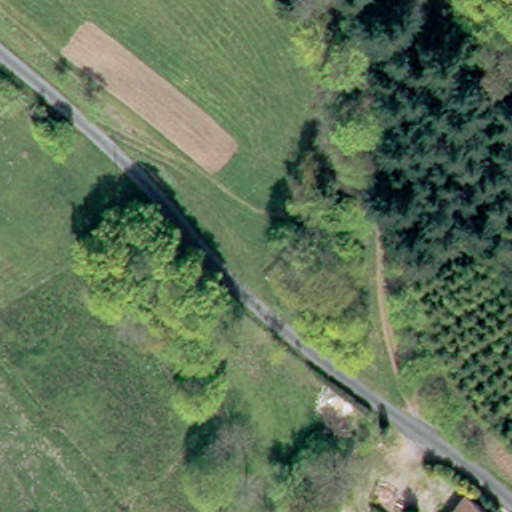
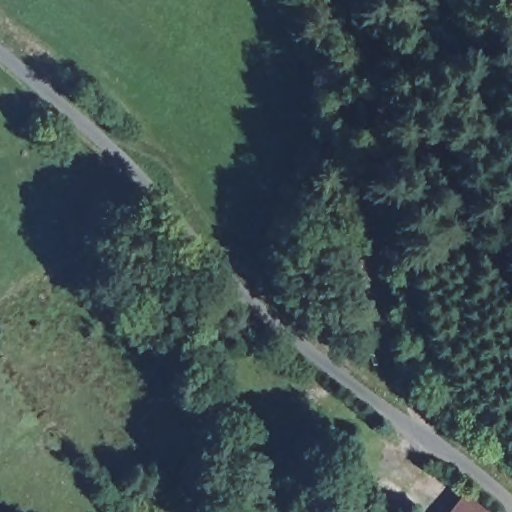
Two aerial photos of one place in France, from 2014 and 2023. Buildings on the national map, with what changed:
unchanged [(493,512),(456,512),(471,494),(493,512)]

